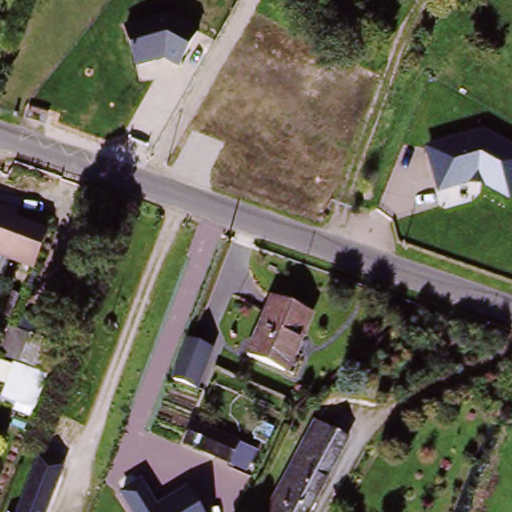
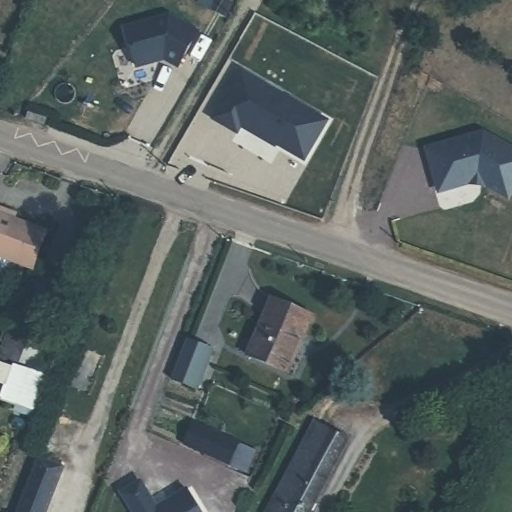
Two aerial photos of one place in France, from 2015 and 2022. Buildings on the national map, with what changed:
unchanged [(168,17),(197,34),(177,69),(165,61),(137,69),(125,28),(168,17)]
new [(327,121),(304,161),(276,145),(275,147),(241,127),(237,133),(212,119),(240,70),(327,121)]
unchanged [(467,186),(435,195),(424,146),(482,129),(512,146),(512,194),(508,201),(482,189),(467,186)]
unchanged [(15,206),(11,214),(47,231),(32,266),(9,255),(0,275),(0,199),(15,206)]
unchanged [(289,373),(251,357),(277,299),(315,316),(289,373)]
unchanged [(16,362),(0,356),(0,343),(13,306),(65,327),(40,414),(2,402),(16,362)]
unchanged [(212,351),(197,392),(170,381),(185,340),(212,351)]
unchanged [(188,444),(197,422),(239,439),(232,462),(188,444)]
unchanged [(313,512),(273,512),(305,445),(314,428),(326,434),(347,445),(313,512)]
unchanged [(14,496),(18,497),(35,460),(42,462),(48,448),(70,456),(47,512),(8,512),(14,496)]
unchanged [(157,504),(185,487),(201,512),(130,512),(119,492),(140,480),(157,504)]

